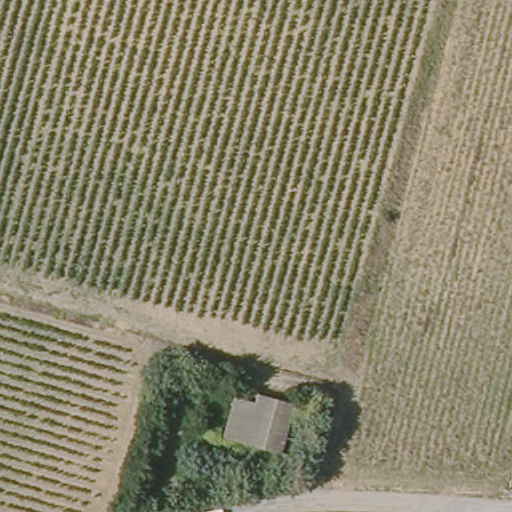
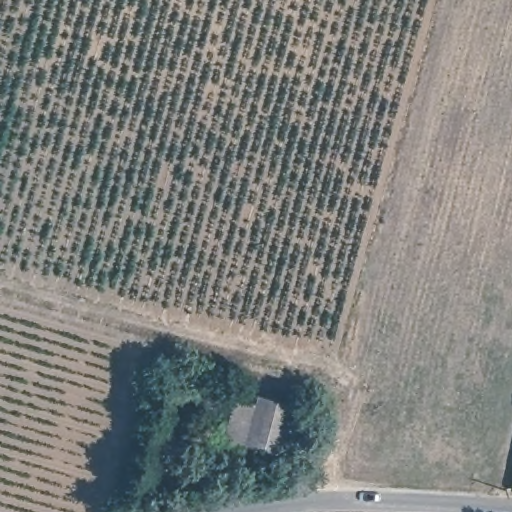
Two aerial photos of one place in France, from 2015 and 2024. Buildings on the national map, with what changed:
unchanged [(292,410),(277,462),(262,459),(265,452),(189,425),(202,386),(292,410)]

